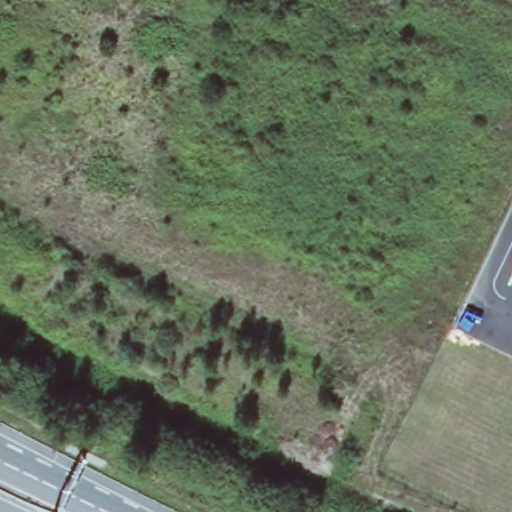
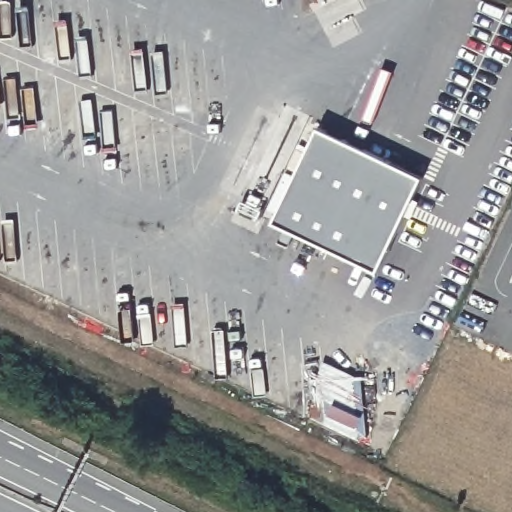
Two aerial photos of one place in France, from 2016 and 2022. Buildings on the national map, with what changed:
new [(321,135),(426,185),(381,280),(276,230),(321,135)]

